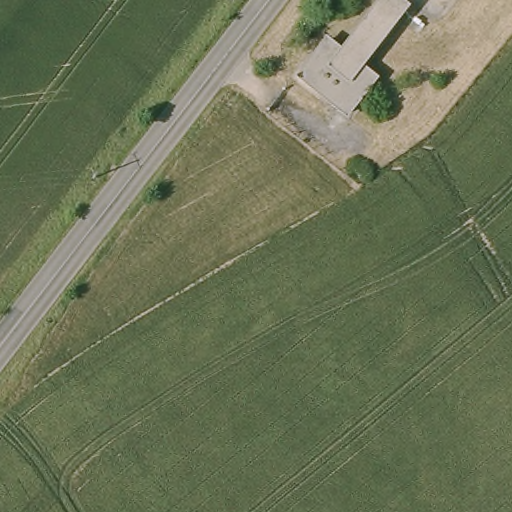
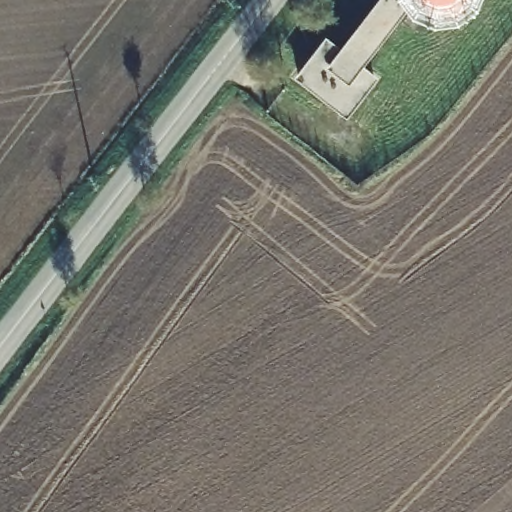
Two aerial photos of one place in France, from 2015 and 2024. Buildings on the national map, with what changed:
unchanged [(295,81),(321,44),(340,57),(381,0),(392,0),(405,9),(359,72),(372,81),(345,118),(295,81)]
unchanged [(437,11),(417,9),(407,0),(455,0),(437,11)]

